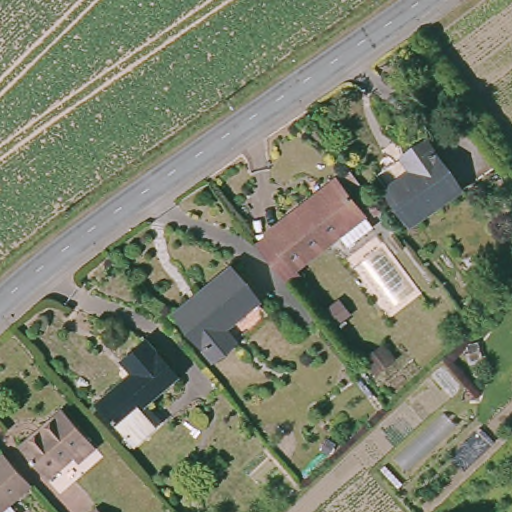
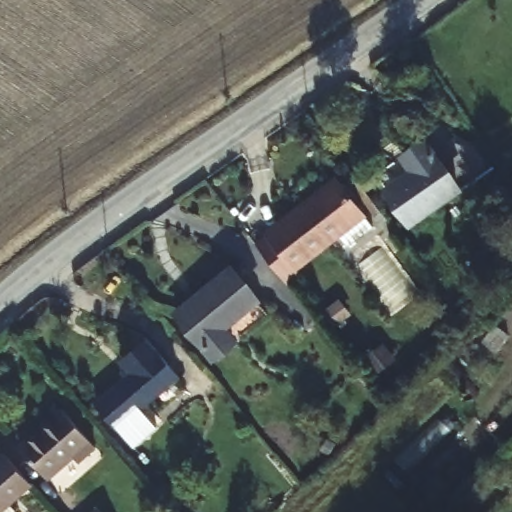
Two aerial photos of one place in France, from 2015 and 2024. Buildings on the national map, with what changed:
unchanged [(375,179),(425,141),(459,189),(410,225),(375,179)]
unchanged [(275,225),(272,220),(338,167),(377,215),(348,237),(338,225),(300,256),(318,280),(306,288),(263,233),(275,225)]
unchanged [(166,310),(221,265),(262,316),(207,361),(166,310)]
unchanged [(90,403),(125,373),(113,358),(140,336),(176,378),(113,430),(90,403)]
unchanged [(383,346),(395,363),(375,378),(363,362),(383,346)]
unchanged [(95,448),(83,458),(76,452),(46,477),(20,448),(50,422),(46,417),(57,407),(95,448)]
unchanged [(1,512),(0,512),(0,452),(12,465),(30,486),(1,512)]
unchanged [(102,508),(105,512),(98,512),(102,508)]

